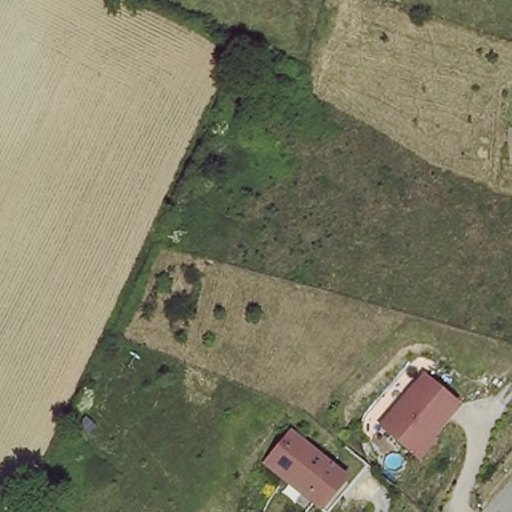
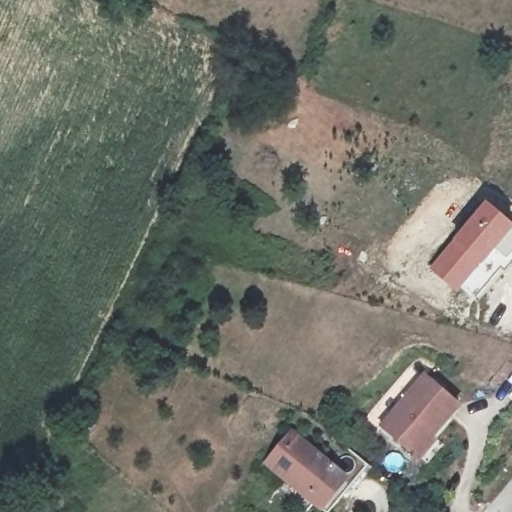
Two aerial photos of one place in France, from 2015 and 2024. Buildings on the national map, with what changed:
new [(457,292),(429,267),(484,200),(512,224),(512,256),(507,263),(473,298),(461,288),(457,292)]
unchanged [(425,377),(459,405),(416,455),(382,426),(425,377)]
unchanged [(319,471),(336,451),(357,469),(358,470),(322,512),(309,512),(304,508),(307,504),(261,466),(282,441),(319,471)]

